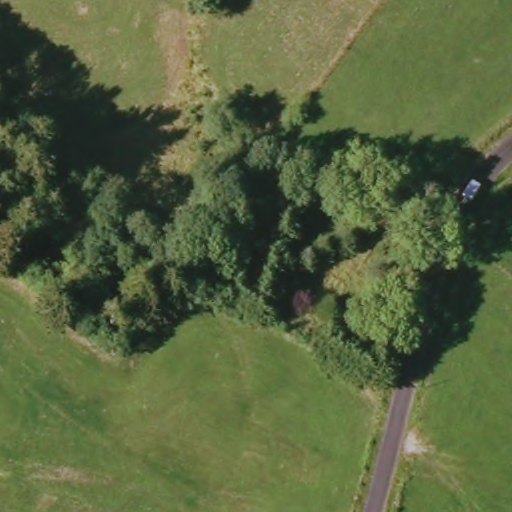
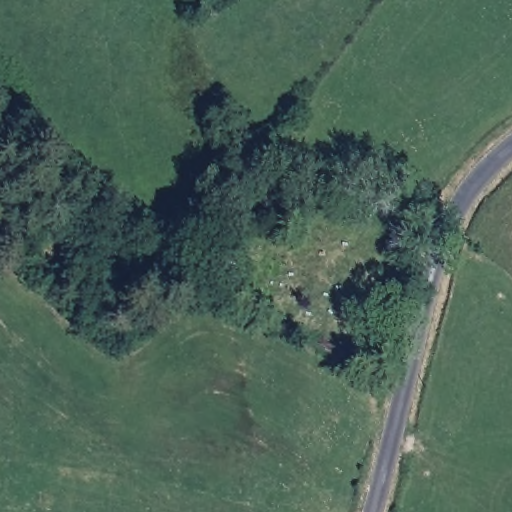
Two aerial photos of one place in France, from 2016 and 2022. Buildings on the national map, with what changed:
[]

